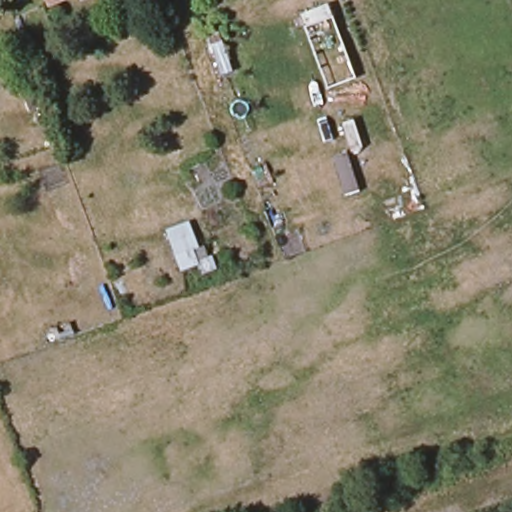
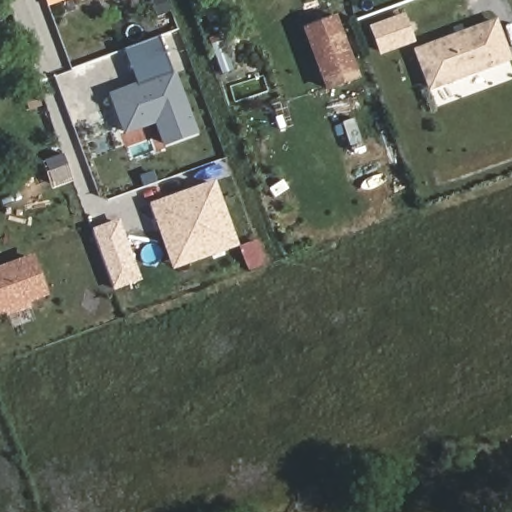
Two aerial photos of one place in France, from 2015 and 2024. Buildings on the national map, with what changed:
unchanged [(43,0),(67,0),(45,7),(43,0)]
demolished [(318,0),(319,4),(279,15),(275,0),(277,0),(318,0)]
new [(334,15),(360,78),(324,92),(300,27),(304,25),(298,10),(327,1),(334,15)]
new [(495,18),(511,60),(427,91),(413,49),(495,18)]
new [(133,68),(126,49),(161,36),(168,56),(174,73),(139,85),(133,68)]
new [(165,144),(157,120),(125,131),(112,95),(174,73),(196,133),(165,144)]
new [(161,229),(152,206),(213,184),(235,244),(209,254),(173,267),(161,229)]
demolished [(189,220),(199,249),(193,251),(200,268),(180,275),(164,229),(189,220)]
new [(115,292),(103,260),(94,237),(120,227),(129,251),(140,282),(115,292)]
new [(38,257),(51,293),(0,312),(0,271),(38,257)]

